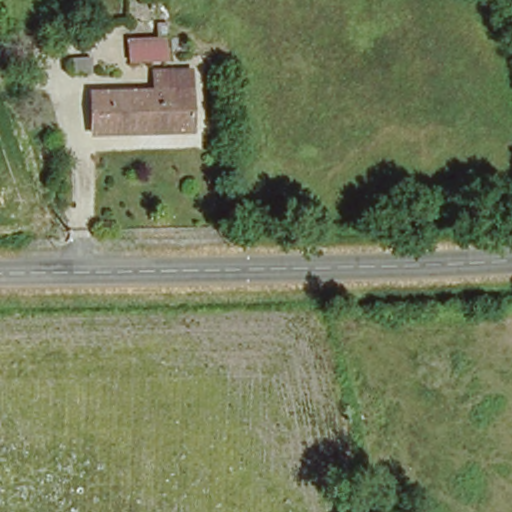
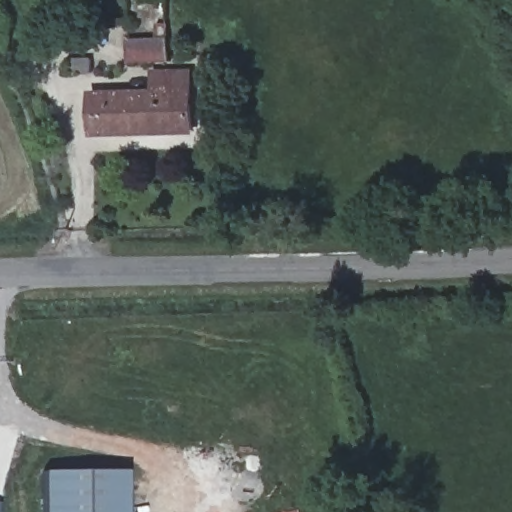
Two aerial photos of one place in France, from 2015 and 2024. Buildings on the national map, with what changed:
unchanged [(85,131),(84,86),(155,84),(160,64),(201,64),(197,130),(85,131)]
new [(120,512),(36,512),(35,470),(119,470),(120,512)]
new [(7,512),(0,512),(0,500),(6,500),(7,512)]

